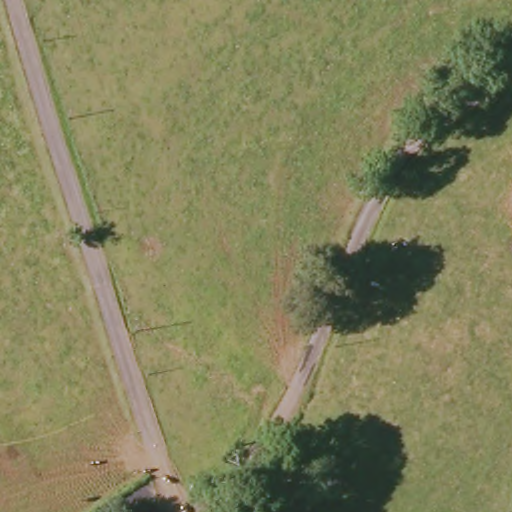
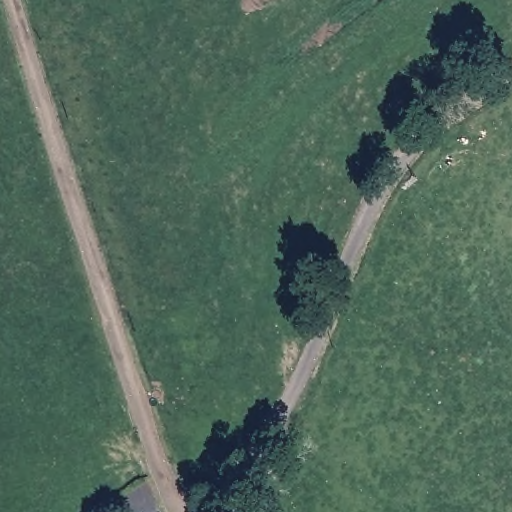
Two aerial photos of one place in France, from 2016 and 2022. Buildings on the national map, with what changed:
unchanged [(155,501),(161,512),(143,512),(155,501)]

